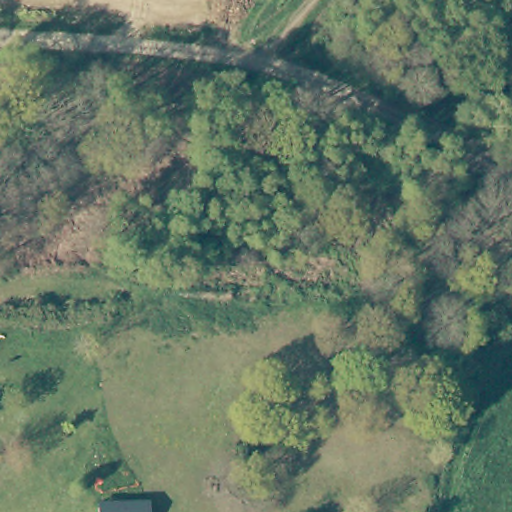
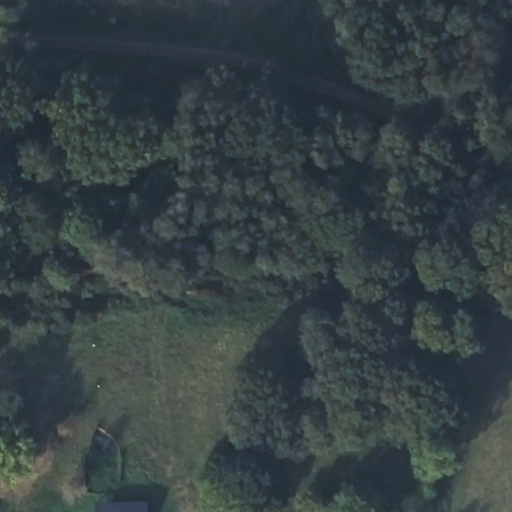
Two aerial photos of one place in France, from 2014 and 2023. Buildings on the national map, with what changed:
unchanged [(145,503),(145,512),(95,512),(95,503),(145,503)]

